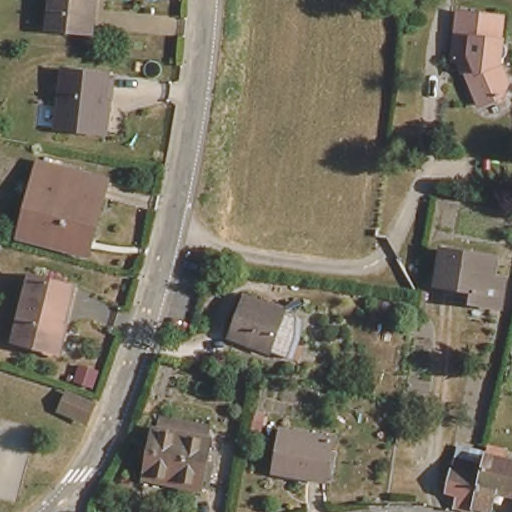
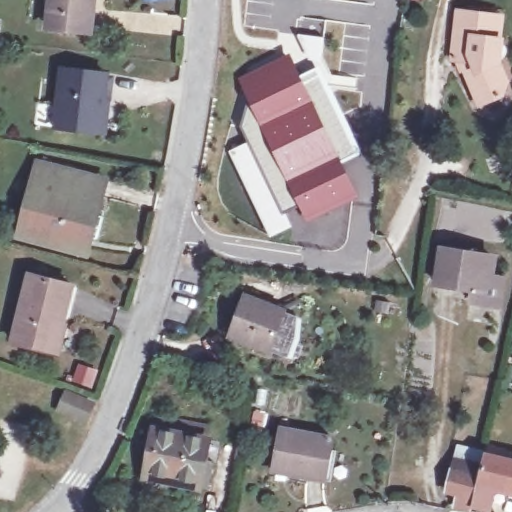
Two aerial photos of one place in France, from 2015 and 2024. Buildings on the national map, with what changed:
unchanged [(59,0),(98,0),(94,34),(55,30),(59,0)]
unchanged [(400,11),(401,0),(419,0),(417,13),(400,11)]
unchanged [(505,61),(512,72),(512,91),(479,109),(446,60),(454,5),(509,9),(505,61)]
new [(249,143),(242,128),(251,93),(250,88),(270,78),(268,70),(288,60),(299,83),(311,79),(317,91),(326,87),(356,152),(336,162),(353,194),(311,215),(305,203),(287,211),(293,224),(270,236),(230,151),(249,143)]
unchanged [(67,74),(113,79),(106,137),(60,131),(67,74)]
unchanged [(21,241),(23,234),(33,195),(26,193),(33,165),(81,179),(102,185),(98,201),(87,243),(83,260),(21,241)]
unchanged [(442,250),(493,256),(490,276),(502,277),(499,302),(470,299),(472,288),(438,283),(442,250)]
unchanged [(47,355),(15,349),(28,280),(72,289),(62,331),(57,357),(47,355)]
unchanged [(242,301),(281,315),(267,355),(227,341),(242,301)]
unchanged [(65,395),(87,404),(81,423),(58,414),(65,395)]
unchanged [(277,433),(328,442),(321,483),(270,475),(277,433)]
unchanged [(157,436),(210,446),(209,456),(201,497),(148,487),(155,447),(157,436)]
unchanged [(487,443),(506,447),(505,454),(512,456),(512,488),(494,484),(489,505),(473,502),(483,461),(485,450),(487,443)]
unchanged [(473,502),(472,507),(455,504),(457,491),(448,489),(452,468),(458,469),(466,470),(469,458),(483,461),(473,502)]

